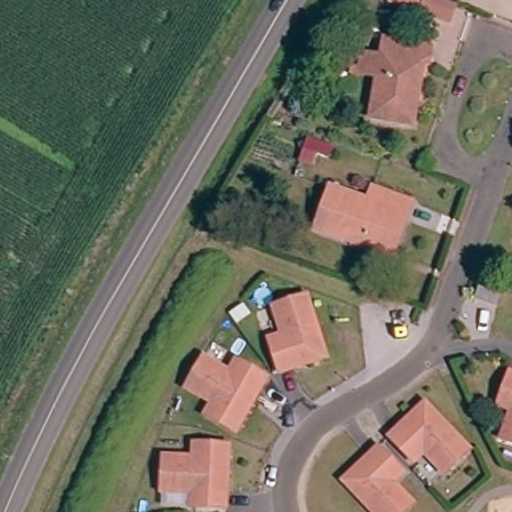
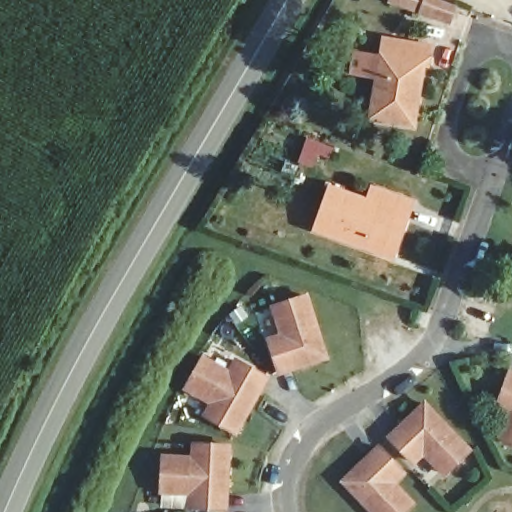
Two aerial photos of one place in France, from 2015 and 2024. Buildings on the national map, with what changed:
unchanged [(409,0),(453,0),(448,14),(409,0)]
unchanged [(427,66),(413,66),(407,122),(372,119),(380,52),(381,40),(392,41),(428,45),(427,66)]
unchanged [(378,260),(315,236),(330,196),(362,207),(370,191),(410,205),(402,226),(389,263),(378,260)]
unchanged [(304,302),(324,360),(278,376),(266,345),(279,340),(271,313),(304,302)]
unchanged [(199,414),(206,404),(184,388),(201,363),(223,379),(233,364),(264,385),(232,435),(199,414)]
unchanged [(512,440),(502,435),(508,412),(493,405),(505,374),(512,377),(512,440)]
unchanged [(424,450),(414,460),(391,433),(427,401),(470,447),(446,469),(424,450)]
unchanged [(400,512),(369,512),(340,481),(377,447),(399,471),(389,483),(408,505),(400,512)]
unchanged [(187,468),(189,455),(225,460),(219,512),(182,512),(181,502),(156,495),(160,465),(187,468)]

